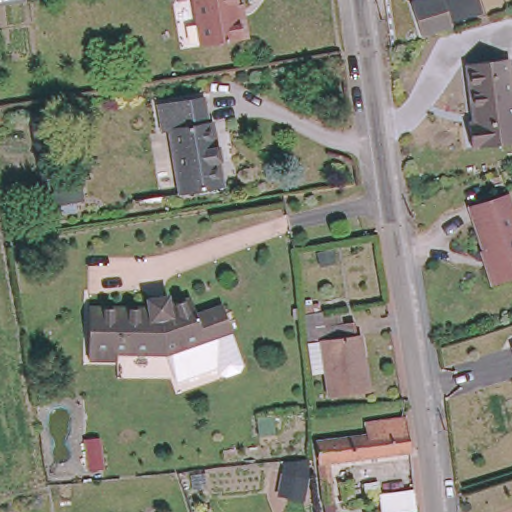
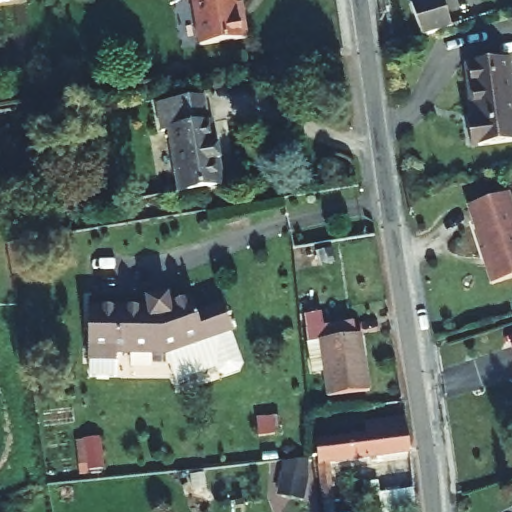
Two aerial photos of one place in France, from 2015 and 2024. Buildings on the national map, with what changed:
unchanged [(242,20),(250,20),(252,39),(207,48),(199,1),(188,2),(188,0),(238,0),(242,20)]
unchanged [(405,1),(406,0),(437,0),(445,25),(415,35),(405,1)]
unchanged [(477,123),(461,63),(500,51),(510,79),(512,79),(512,136),(476,147),(470,127),(477,123)]
unchanged [(161,106),(204,96),(208,118),(213,118),(226,186),(183,194),(170,127),(164,127),(161,106)]
unchanged [(485,261),(469,203),(505,193),(512,216),(512,275),(484,283),(477,262),(485,261)]
unchanged [(139,296),(160,292),(162,302),(183,292),(188,305),(216,292),(228,319),(227,320),(242,352),(239,360),(225,366),(218,363),(216,358),(188,371),(190,373),(178,378),(165,348),(119,357),(120,363),(92,370),(82,319),(141,307),(139,296)]
unchanged [(357,325),(370,397),(329,402),(317,331),(357,325)]
unchanged [(335,469),(340,506),(325,508),(318,452),(364,441),(361,428),(409,418),(414,452),(335,469)]
unchanged [(307,500),(276,492),(280,471),(310,478),(307,500)]
unchanged [(417,492),(382,498),(381,487),(416,481),(417,492)]

